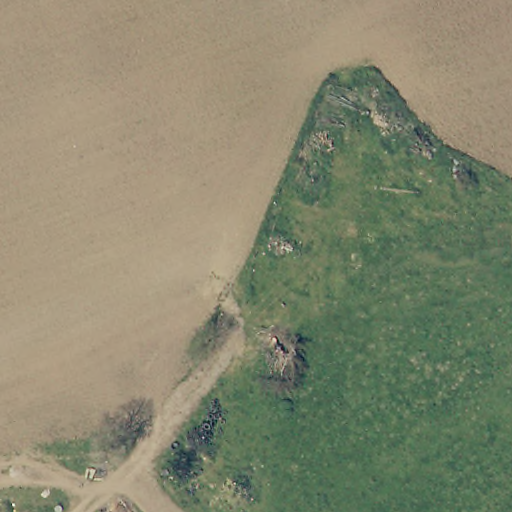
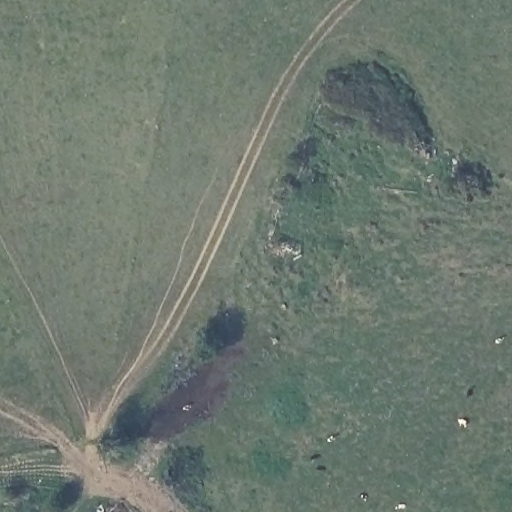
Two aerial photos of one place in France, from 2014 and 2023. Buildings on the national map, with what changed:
[]

